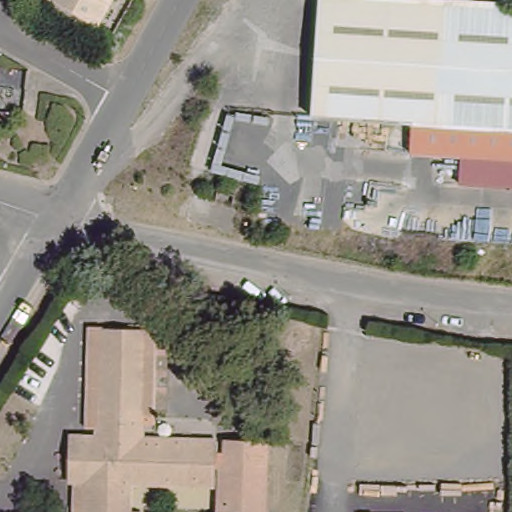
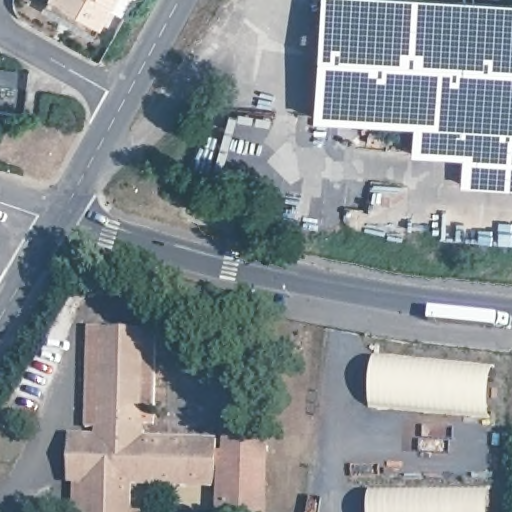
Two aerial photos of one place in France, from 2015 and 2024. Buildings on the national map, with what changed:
unchanged [(43,0),(114,0),(95,32),(43,0)]
unchanged [(510,0),(512,0),(512,141),(434,136),(409,134),(311,127),(323,0),(510,0)]
unchanged [(226,122),(267,135),(253,169),(246,166),(240,181),(211,167),(226,122)]
unchanged [(434,136),(512,141),(512,188),(459,184),(459,158),(407,154),(409,134),(434,136)]
unchanged [(156,327),(158,417),(141,417),(142,435),(267,437),(265,512),(214,512),(214,482),(132,483),(132,512),(74,512),(75,482),(66,482),(70,432),(87,432),(88,328),(156,327)]
new [(374,353),(447,360),(494,366),(490,418),(369,407),(374,353)]
new [(487,485),(488,512),(369,512),(368,490),(487,485)]

